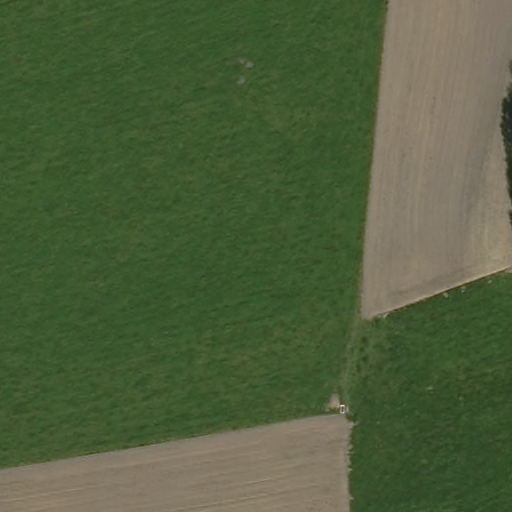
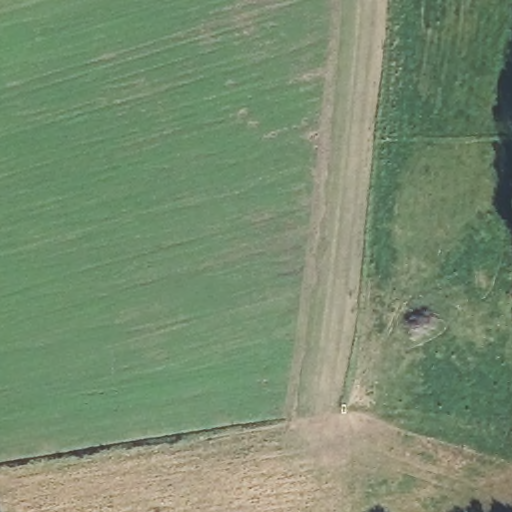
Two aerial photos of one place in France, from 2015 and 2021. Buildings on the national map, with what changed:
[]

